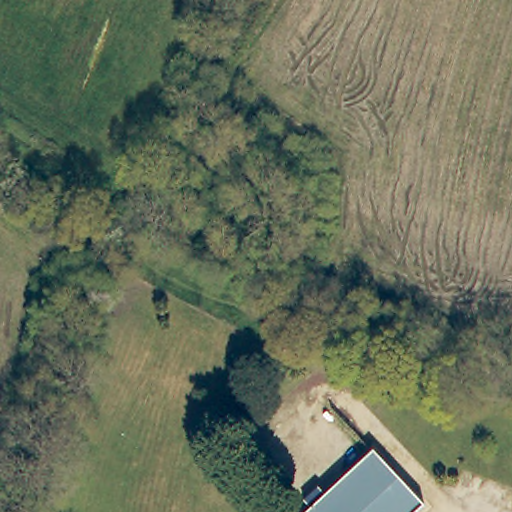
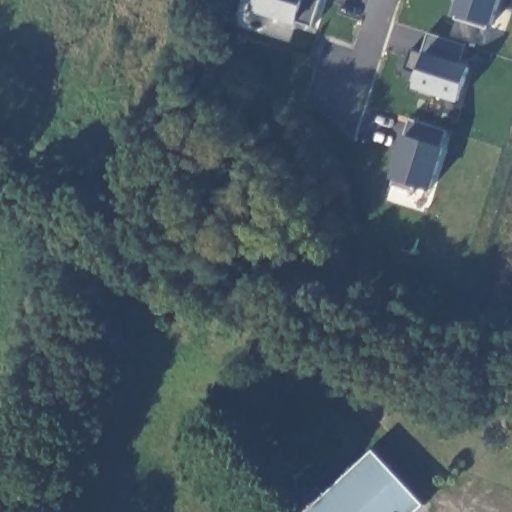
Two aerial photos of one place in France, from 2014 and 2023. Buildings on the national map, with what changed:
new [(310,28),(296,24),(251,10),(254,0),(320,0),(310,28)]
new [(492,25),(453,15),(458,0),(500,0),(492,25)]
new [(461,62),(470,65),(458,102),(413,89),(416,71),(403,68),(411,47),(424,51),(426,34),(466,46),(461,62)]
new [(443,147),(431,189),(391,178),(405,133),(408,119),(445,130),(443,147)]
unchanged [(418,512),(307,512),(309,510),(302,502),(317,488),(324,496),(372,452),(423,507),(418,512)]

